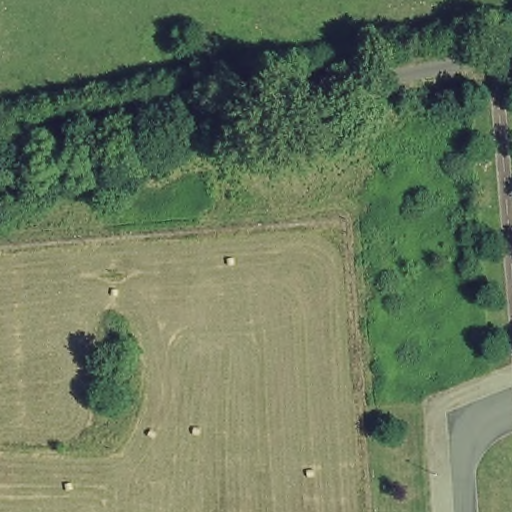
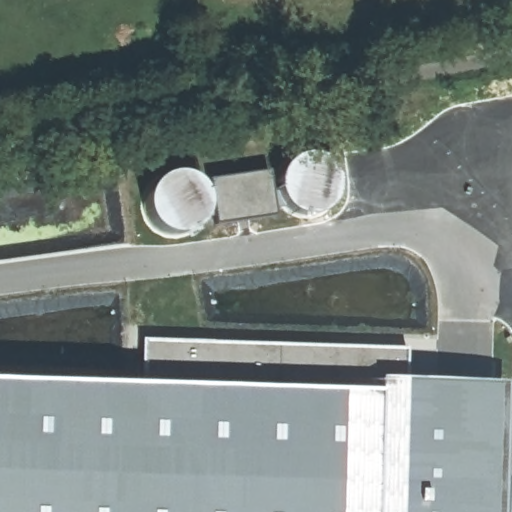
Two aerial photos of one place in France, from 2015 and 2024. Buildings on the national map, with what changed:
new [(268,171),(275,217),(215,226),(207,180),(268,171)]
new [(408,349),(407,380),(376,379),(376,393),(140,385),(141,339),(408,349)]
new [(140,385),(376,393),(376,379),(407,380),(505,383),(501,512),(0,512),(0,381),(140,385)]

